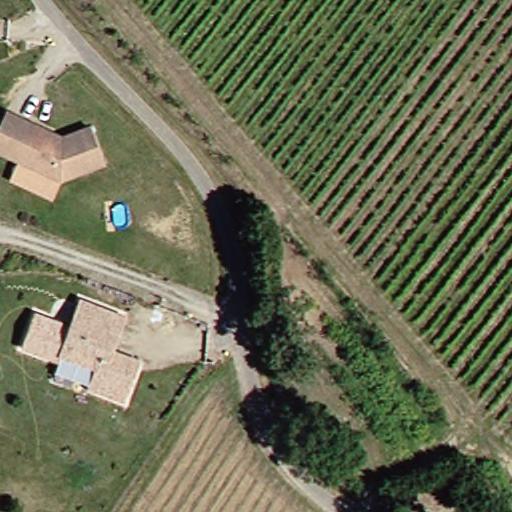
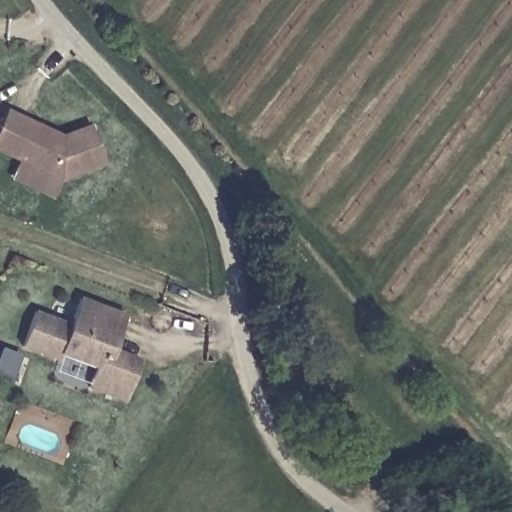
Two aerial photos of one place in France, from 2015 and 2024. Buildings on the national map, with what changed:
unchanged [(59,137),(88,126),(102,161),(57,177),(0,151),(0,117),(3,111),(59,137)]
unchanged [(120,405),(85,391),(92,372),(57,358),(55,365),(19,351),(32,316),(67,330),(77,302),(121,320),(109,353),(136,363),(133,372),(120,405)]

